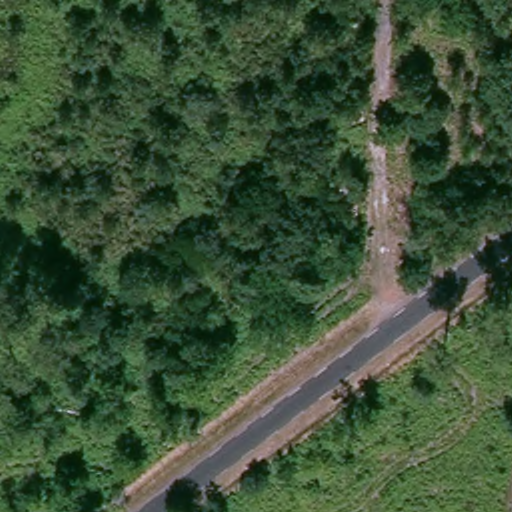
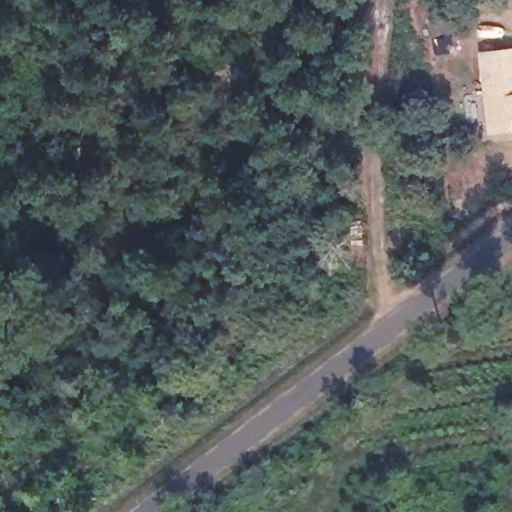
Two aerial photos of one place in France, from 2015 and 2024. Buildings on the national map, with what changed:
new [(490,132),(481,53),(512,49),(512,131),(490,132)]

